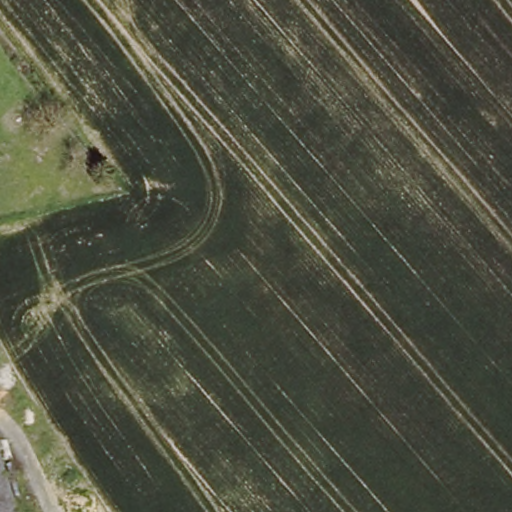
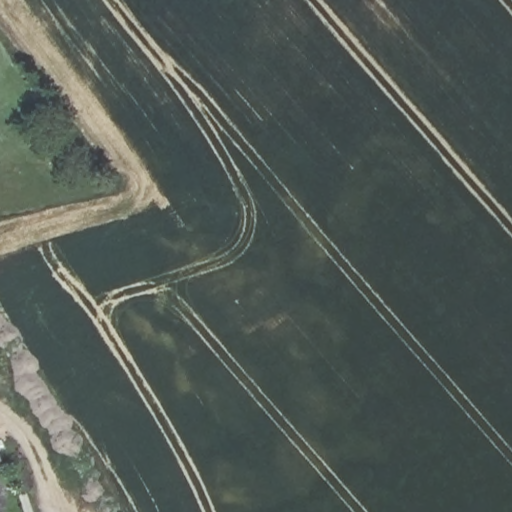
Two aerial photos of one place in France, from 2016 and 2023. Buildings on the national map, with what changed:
unchanged [(11,512),(0,512),(0,481),(11,512)]

